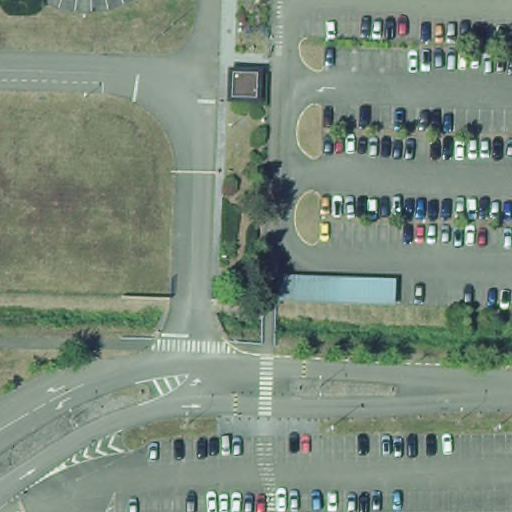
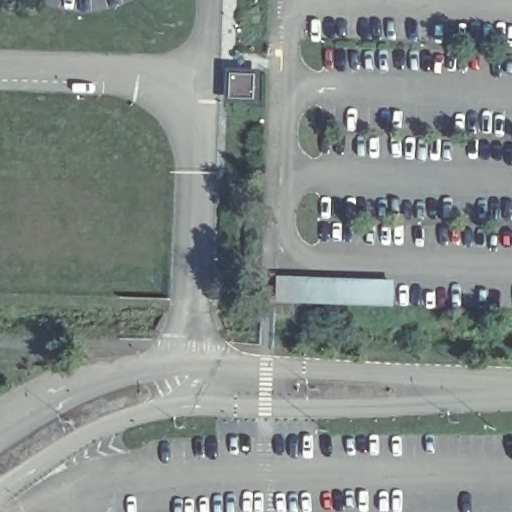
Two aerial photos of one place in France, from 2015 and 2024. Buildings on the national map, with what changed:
unchanged [(254,101),(226,100),(228,72),(255,75),(254,101)]
unchanged [(277,300),(279,280),(392,285),(391,305),(277,300)]

